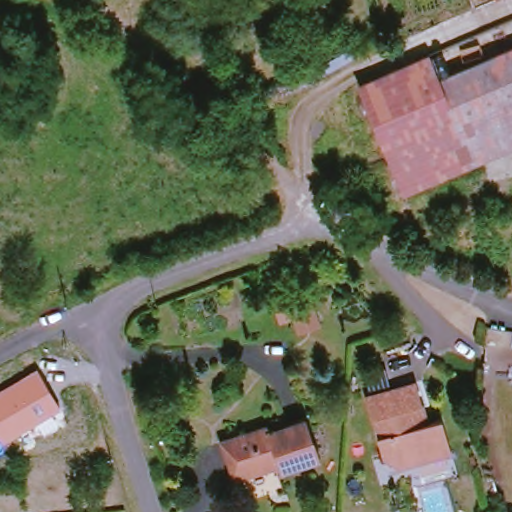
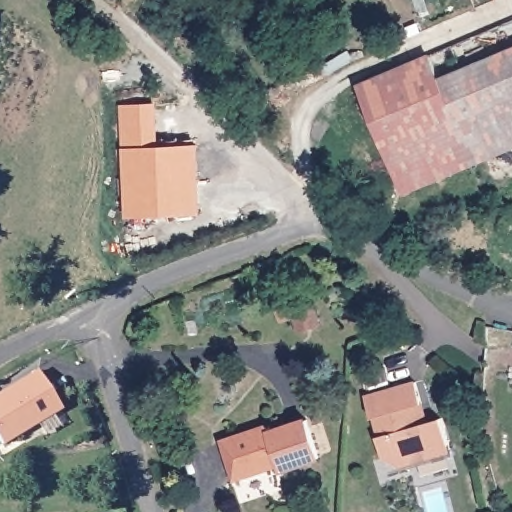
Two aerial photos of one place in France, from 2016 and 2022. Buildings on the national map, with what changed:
unchanged [(400,196),(351,90),(423,59),(434,82),(512,45),(512,144),(400,196)]
new [(125,218),(121,148),(119,105),(156,104),(159,146),(198,144),(202,214),(125,218)]
unchanged [(289,335),(288,330),(284,320),(272,324),(266,305),(294,295),(304,324),(306,330),(289,335)]
unchanged [(53,413),(59,423),(45,433),(38,423),(4,445),(0,438),(0,392),(37,368),(61,407),(53,413)]
unchanged [(411,458),(407,459),(406,455),(381,463),(373,434),(378,433),(373,418),(368,420),(361,395),(412,380),(416,400),(421,421),(440,415),(447,441),(449,446),(411,458)]
unchanged [(311,459),(269,472),(267,465),(233,476),(221,438),(257,426),(259,433),(299,421),(311,459)]

